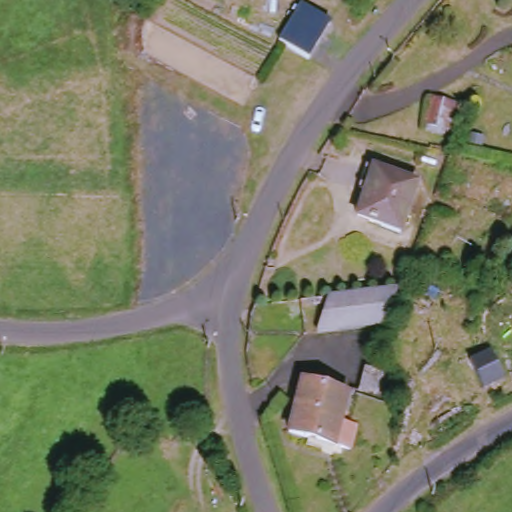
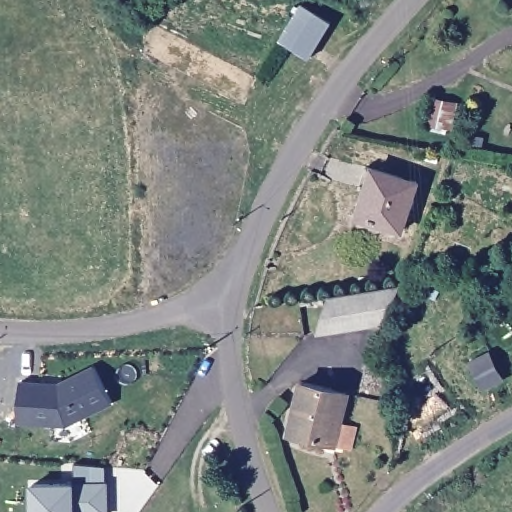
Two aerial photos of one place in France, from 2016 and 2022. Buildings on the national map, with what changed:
unchanged [(332,22),(311,57),(278,41),(300,5),(332,22)]
unchanged [(371,191),(363,189),(369,167),(420,183),(405,230),(364,217),(371,191)]
unchanged [(328,335),(340,296),(409,288),(391,329),(328,335)]
unchanged [(505,383),(483,392),(470,360),(490,351),(505,383)]
new [(113,403),(66,426),(18,423),(20,381),(59,383),(95,365),(113,403)]
unchanged [(370,404),(372,371),(406,373),(403,406),(370,404)]
unchanged [(359,449),(342,445),(294,432),(306,382),(355,394),(347,422),(365,426),(359,449)]
new [(75,483),(108,483),(108,512),(32,512),(32,483),(75,483)]

